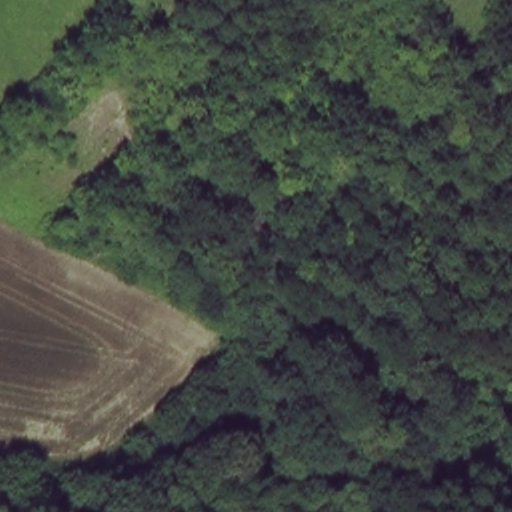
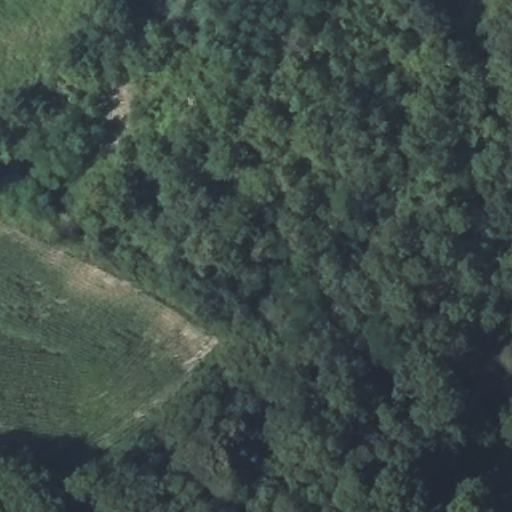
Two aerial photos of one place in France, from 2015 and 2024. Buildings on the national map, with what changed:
[]

